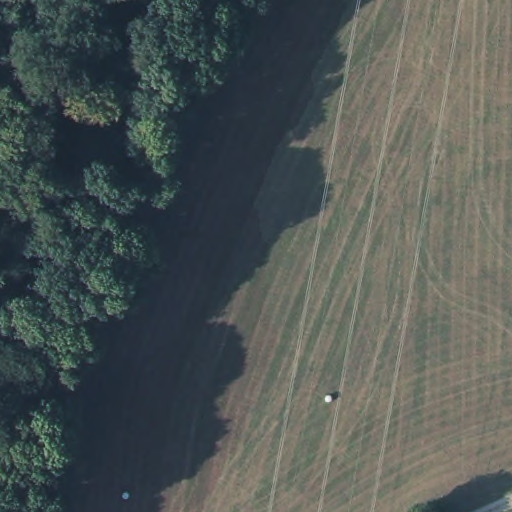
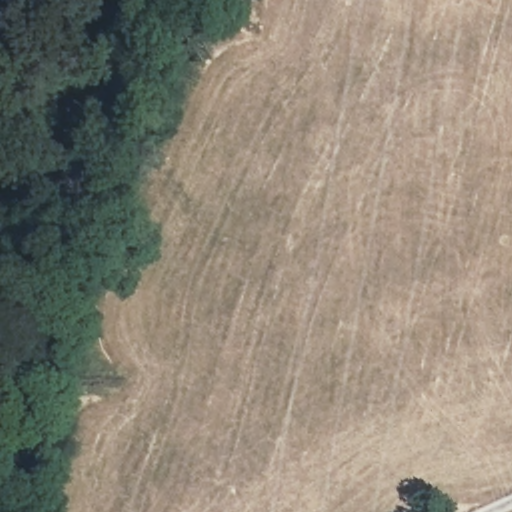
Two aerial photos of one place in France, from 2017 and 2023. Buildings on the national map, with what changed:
[]

